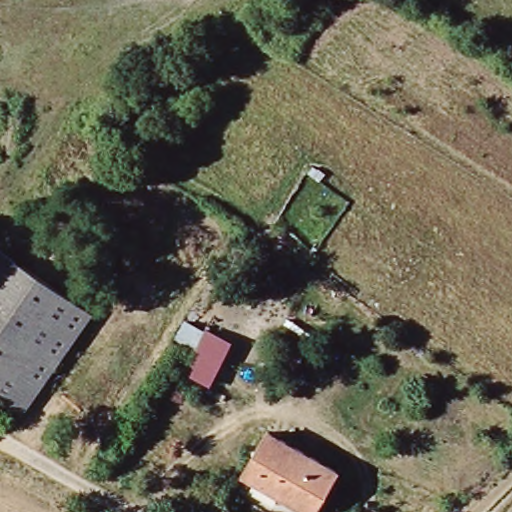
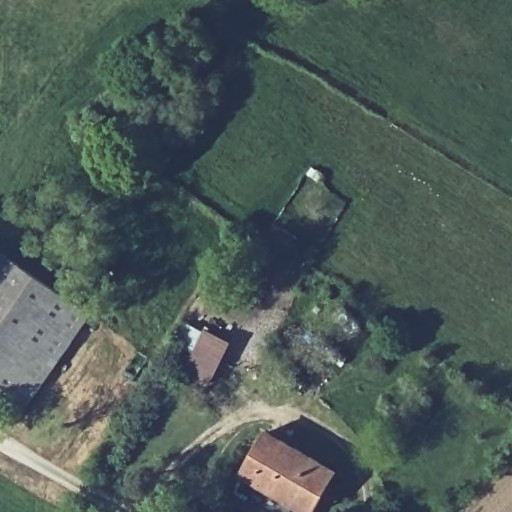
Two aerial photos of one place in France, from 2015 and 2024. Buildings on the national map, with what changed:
unchanged [(0,400),(0,264),(7,255),(86,318),(12,410),(0,400)]
unchanged [(208,337),(228,350),(204,389),(182,375),(208,337)]
unchanged [(338,476),(314,512),(302,512),(249,479),(240,473),(253,454),(268,430),(338,476)]

